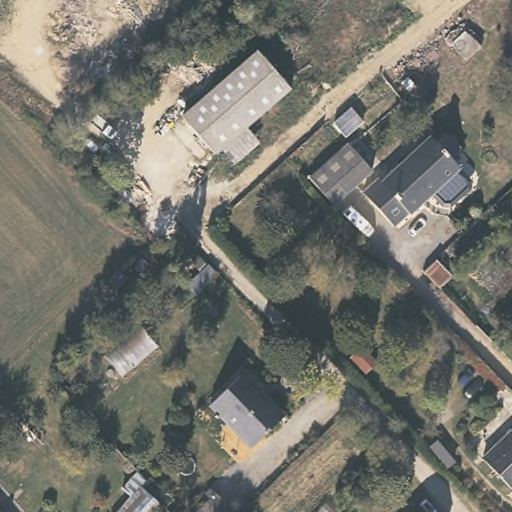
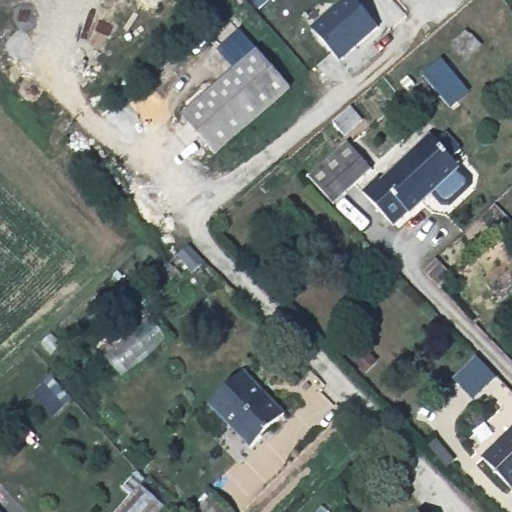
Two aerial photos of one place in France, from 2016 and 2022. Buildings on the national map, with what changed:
new [(343,0),(354,0),(379,28),(340,62),(310,28),(343,0)]
unchanged [(290,87),(219,150),(185,112),(257,49),(290,87)]
new [(444,63),(473,94),(457,110),(427,78),(444,63)]
unchanged [(460,164),(416,206),(411,205),(396,220),(365,186),(383,170),(386,173),(430,133),(460,164)]
unchanged [(313,178),(350,149),(369,171),(330,199),(313,178)]
unchanged [(212,402),(245,372),(250,368),(290,413),(286,417),(255,446),(212,402)]
unchanged [(512,426),(512,484),(483,455),(512,426)]
unchanged [(160,512),(118,512),(142,487),(165,507),(160,512)]
unchanged [(227,506),(234,512),(196,512),(214,494),(227,506)]

